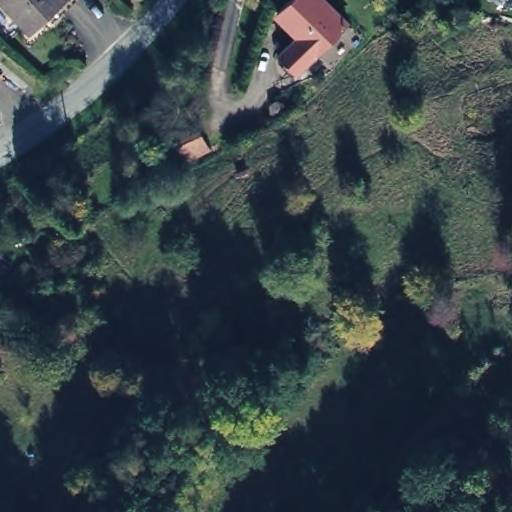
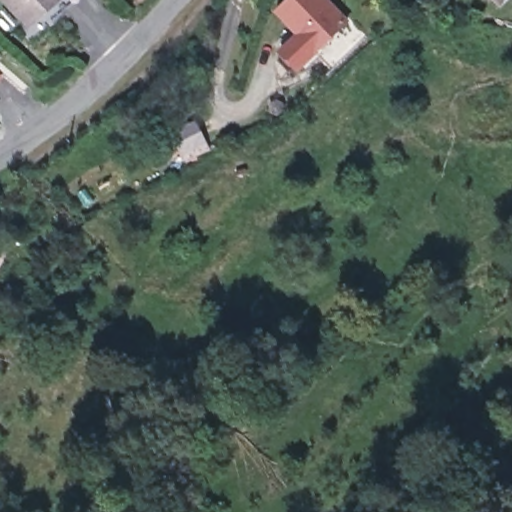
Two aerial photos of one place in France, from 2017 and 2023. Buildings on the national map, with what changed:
unchanged [(0,0),(60,0),(27,28),(0,0)]
unchanged [(347,19),(297,68),(276,46),(294,29),(275,9),(284,0),(330,0),(347,19)]
unchanged [(250,151),(227,161),(213,136),(235,125),(250,151)]

